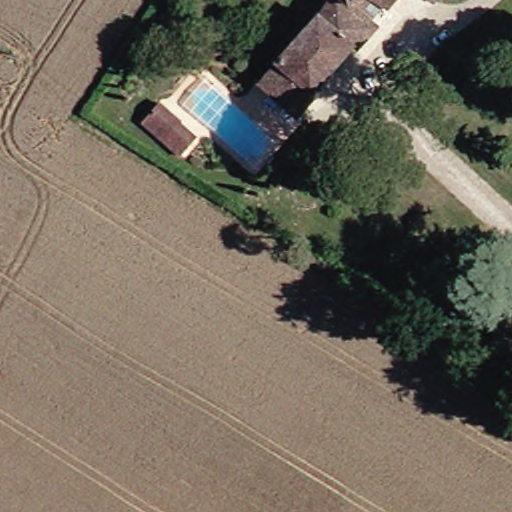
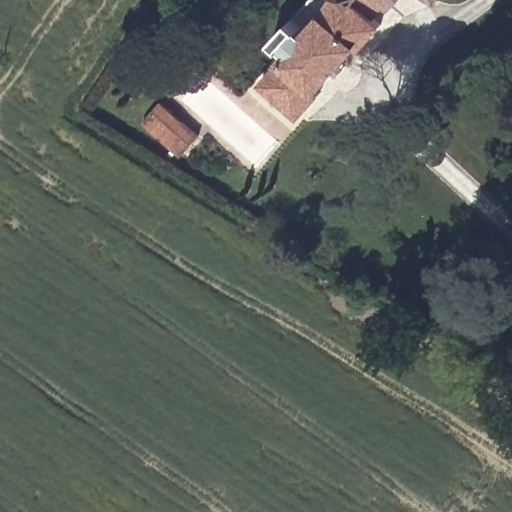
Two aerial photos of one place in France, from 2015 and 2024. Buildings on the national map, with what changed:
unchanged [(352,0),(350,4),(374,23),(355,49),(348,43),(307,92),(313,97),(292,121),(263,97),(252,106),(242,96),(306,22),(321,0),(352,0)]
unchanged [(373,0),(388,0),(385,5),(373,0)]
unchanged [(136,124),(154,104),(191,134),(174,155),(136,124)]

